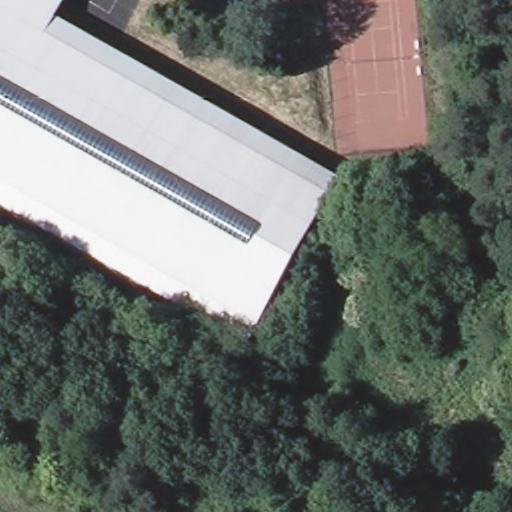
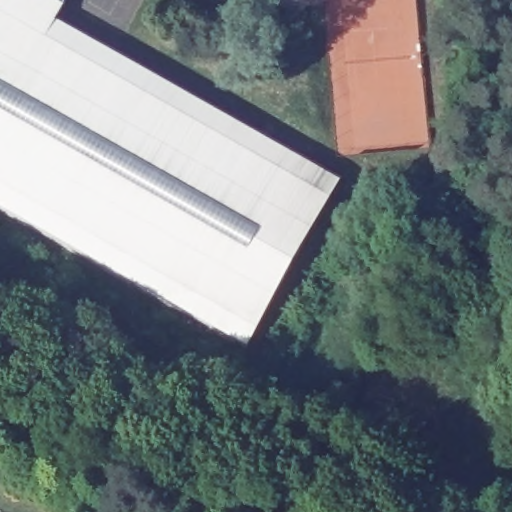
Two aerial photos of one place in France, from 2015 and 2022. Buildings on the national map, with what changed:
unchanged [(0,208),(0,0),(54,0),(60,4),(54,16),(261,135),(164,304),(0,208)]
unchanged [(164,304),(261,135),(338,176),(241,349),(164,304)]

